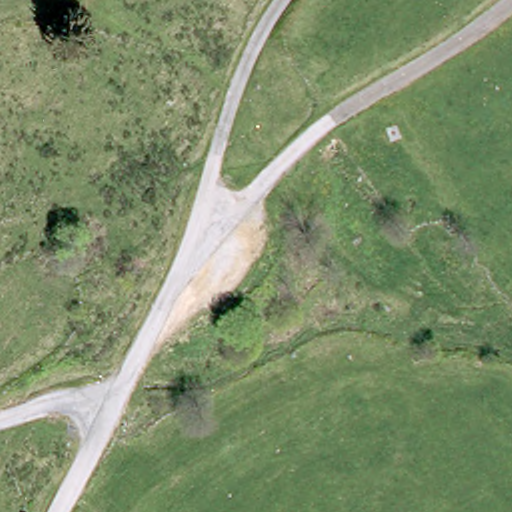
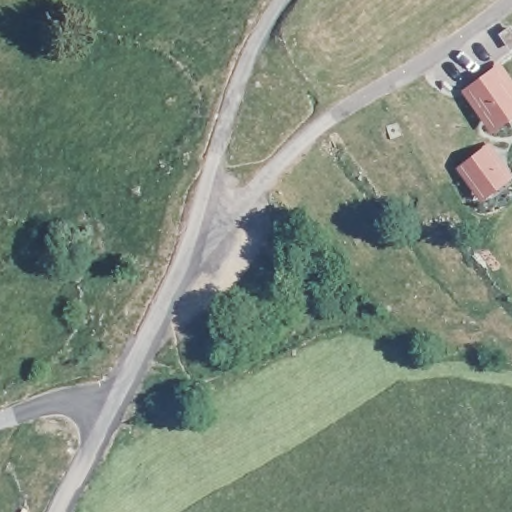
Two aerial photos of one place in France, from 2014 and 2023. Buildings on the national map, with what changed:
new [(462,90),(501,61),(512,75),(512,116),(492,131),(462,90)]
new [(456,167),(490,142),(512,170),(512,176),(482,199),(456,167)]

